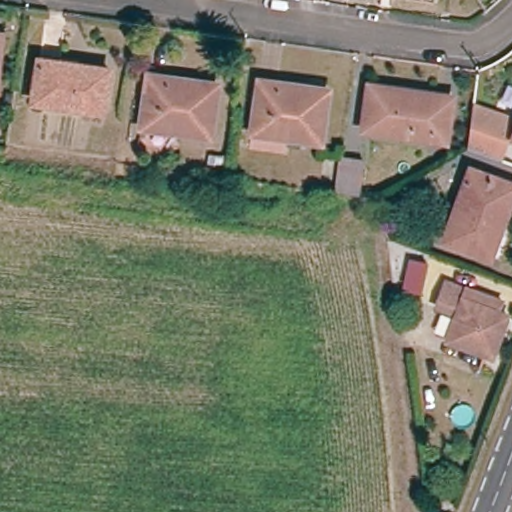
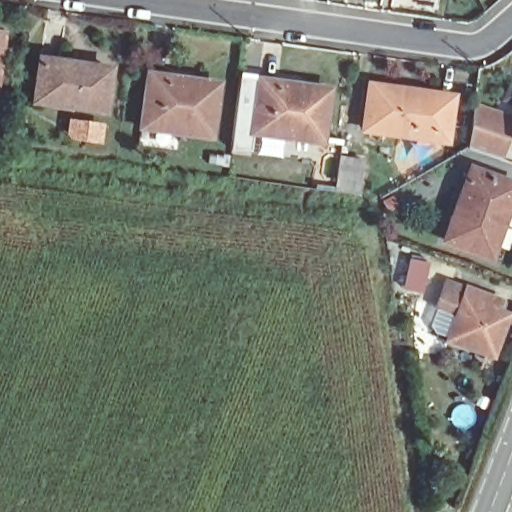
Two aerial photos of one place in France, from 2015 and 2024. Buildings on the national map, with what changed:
unchanged [(109,69),(103,112),(36,102),(42,60),(109,69)]
unchanged [(169,78),(167,82),(218,90),(212,138),(142,127),(149,75),(169,78)]
unchanged [(277,82),(276,89),(327,95),(320,144),(249,133),(257,79),(277,82)]
unchanged [(416,96),(456,102),(450,137),(406,130),(405,136),(366,132),(372,90),(416,96)]
unchanged [(468,147),(473,113),(476,100),(511,113),(507,125),(496,157),(468,147)]
unchanged [(361,190),(333,186),(320,184),(323,160),(336,161),(337,158),(363,161),(361,190)]
unchanged [(512,201),(511,205),(507,205),(487,254),(447,238),(472,168),(512,183),(512,201)]
unchanged [(427,262),(423,290),(407,287),(412,260),(427,262)]
unchanged [(503,301),(500,311),(508,315),(492,355),(447,337),(458,310),(438,303),(448,279),(467,287),(467,285),(503,301)]
unchanged [(437,299),(428,340),(412,336),(418,296),(437,299)]

